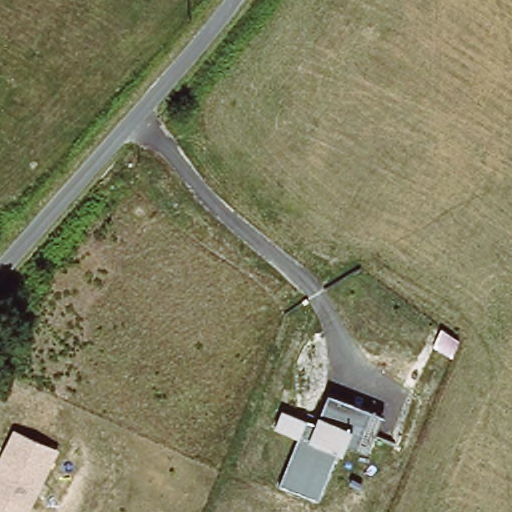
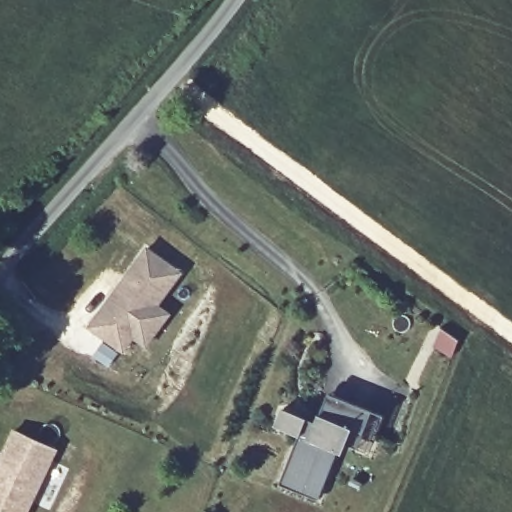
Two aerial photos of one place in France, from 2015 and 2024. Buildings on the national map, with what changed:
new [(183,273),(160,306),(172,315),(147,350),(133,340),(122,356),(83,327),(145,247),(183,273)]
unchanged [(273,425),(281,406),(315,421),(318,414),(328,391),(380,413),(367,442),(348,433),(341,453),(336,452),(318,499),(277,483),(297,437),(273,425)]
unchanged [(57,447),(28,512),(6,512),(0,510),(0,457),(13,427),(57,447)]

